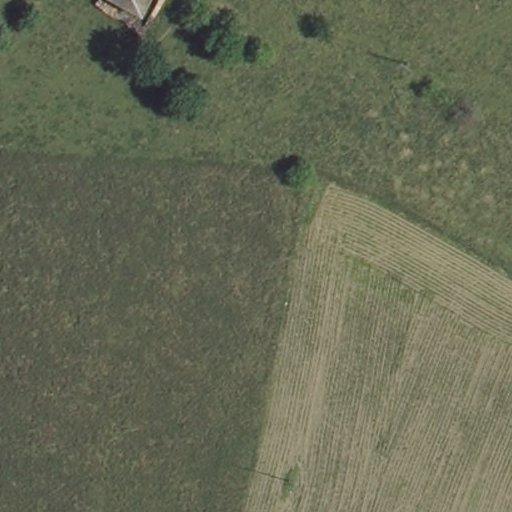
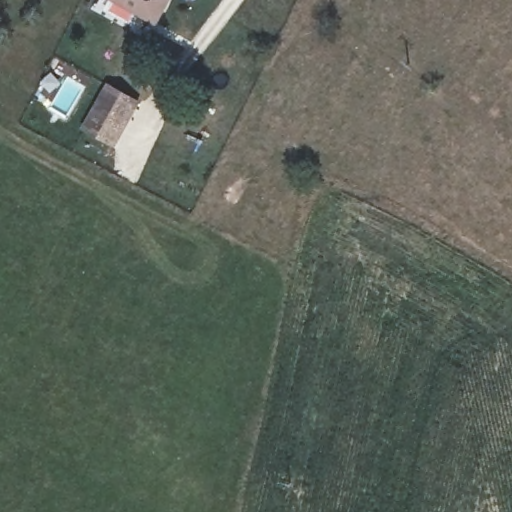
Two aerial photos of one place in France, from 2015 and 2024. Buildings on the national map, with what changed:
unchanged [(114,1),(112,0),(152,0),(146,15),(114,1)]
new [(115,148),(80,129),(107,82),(141,102),(115,148)]

